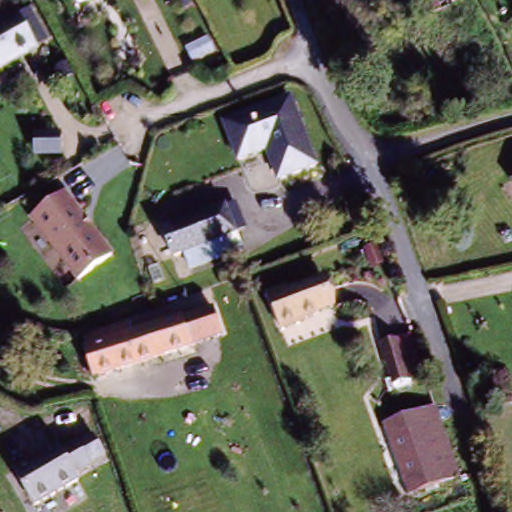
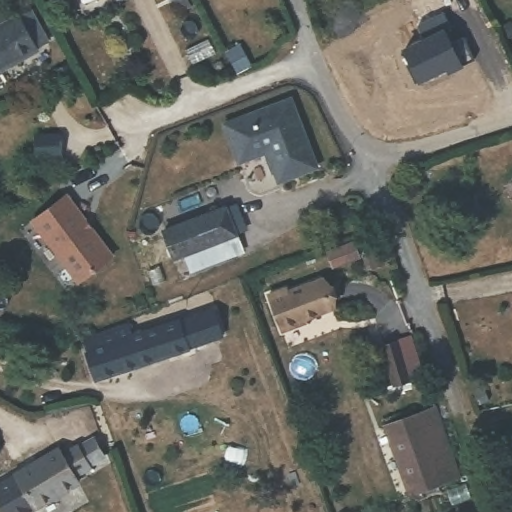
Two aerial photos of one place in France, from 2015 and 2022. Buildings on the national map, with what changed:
unchanged [(194,4),(185,11),(177,0),(192,0),(194,4)]
unchanged [(24,10),(46,42),(0,74),(0,26),(24,10)]
new [(425,41),(418,26),(445,14),(452,29),(444,34),(450,45),(465,39),(475,61),(451,74),(448,69),(415,85),(406,67),(412,65),(405,51),(425,41)]
unchanged [(287,101),(313,167),(281,182),(267,150),(239,161),(224,128),(287,101)]
unchanged [(512,194),(505,184),(512,178),(512,194)]
unchanged [(114,260),(81,288),(35,225),(71,199),(114,260)]
unchanged [(243,233),(191,254),(180,259),(167,229),(231,204),(243,233)]
unchanged [(242,256),(199,273),(191,254),(235,237),(242,256)]
unchanged [(266,295),(281,288),(285,295),(323,280),(334,306),(296,322),(298,327),(283,332),(266,295)]
unchanged [(142,340),(204,319),(207,333),(193,338),(196,348),(105,378),(95,353),(92,344),(111,337),(137,328),(142,340)]
unchanged [(395,352),(404,375),(387,380),(380,358),(395,352)]
unchanged [(429,409),(455,482),(411,497),(384,425),(429,409)]
unchanged [(56,448),(64,455),(77,442),(80,445),(94,435),(106,450),(92,460),(94,462),(77,476),(80,480),(41,510),(17,479),(56,448)]

